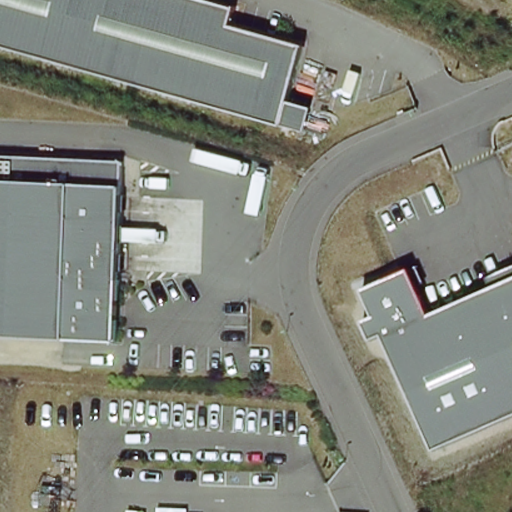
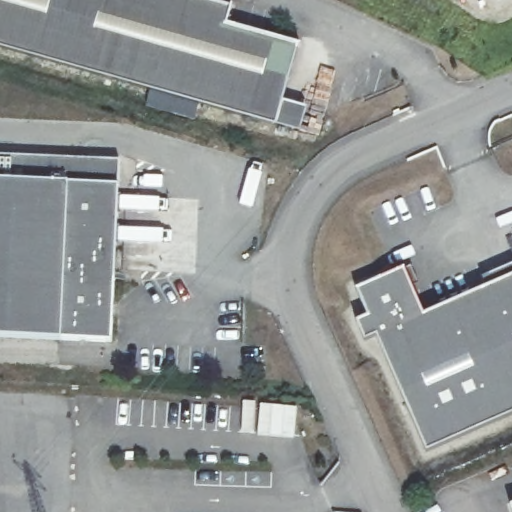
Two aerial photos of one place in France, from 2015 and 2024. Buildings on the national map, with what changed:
unchanged [(226,21),(302,43),(289,99),(312,105),(303,133),(283,126),(0,47),(0,0),(206,0),(230,6),(226,21)]
unchanged [(114,343),(0,338),(0,158),(121,163),(114,343)]
unchanged [(426,450),(378,336),(365,341),(356,321),(369,316),(357,289),(404,271),(421,316),(512,277),(512,413),(426,450)]

